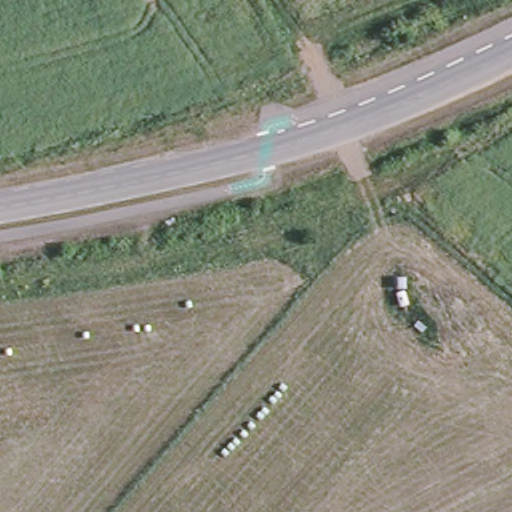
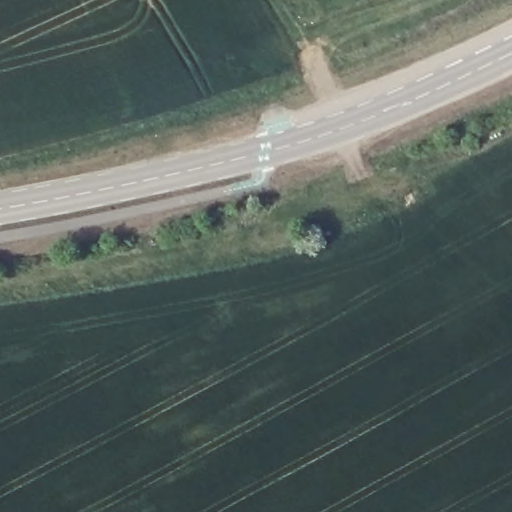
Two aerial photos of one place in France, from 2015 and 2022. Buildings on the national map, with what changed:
unchanged [(431,321),(420,335),(402,326),(415,313),(431,321)]

